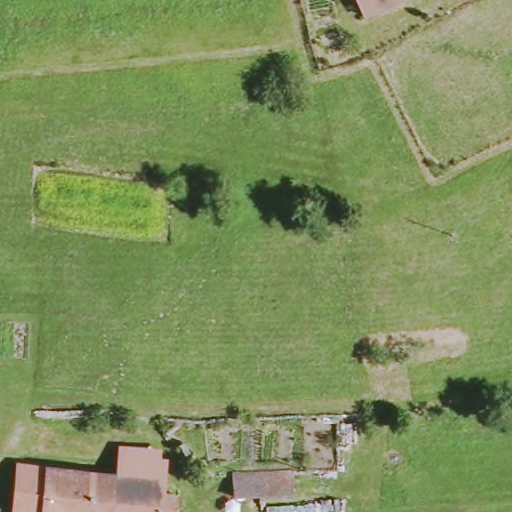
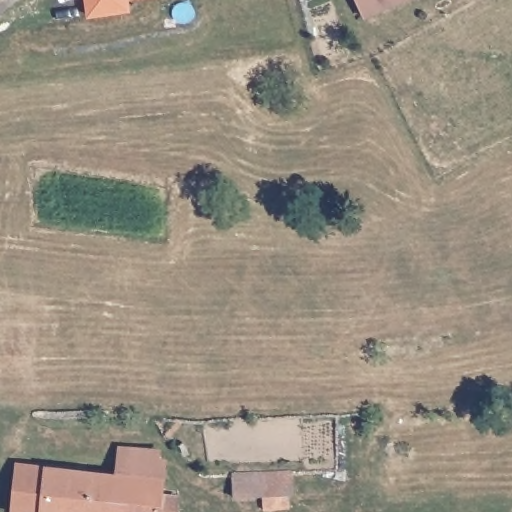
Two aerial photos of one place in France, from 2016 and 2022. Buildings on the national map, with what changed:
new [(86,17),(84,0),(130,0),(131,11),(86,17)]
unchanged [(365,19),(357,0),(406,0),(365,19)]
unchanged [(114,471),(115,445),(151,447),(159,457),(158,475),(162,475),(160,495),(181,495),(179,512),(42,512),(45,467),(114,471)]
unchanged [(45,467),(42,512),(11,512),(17,464),(45,467)]

